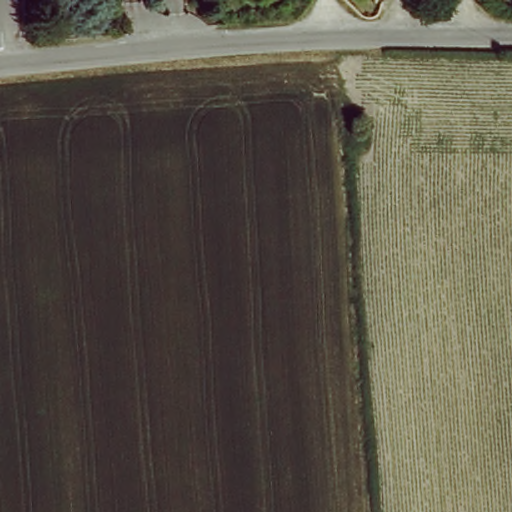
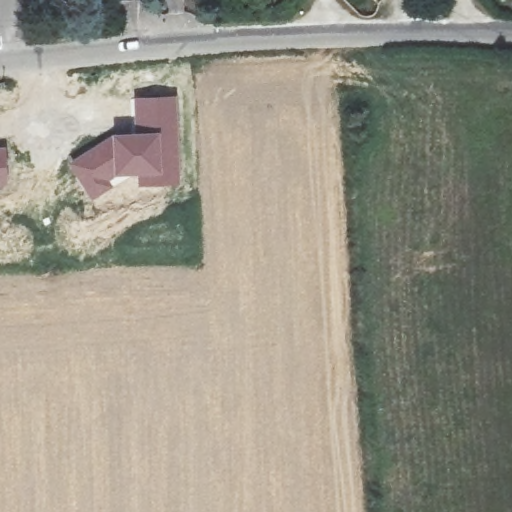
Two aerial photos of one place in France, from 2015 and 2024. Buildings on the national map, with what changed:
new [(111,132),(134,130),(133,96),(177,95),(180,184),(138,185),(137,175),(122,177),(113,183),(92,200),(67,162),(111,132)]
new [(9,185),(0,186),(0,145),(7,145),(9,185)]

